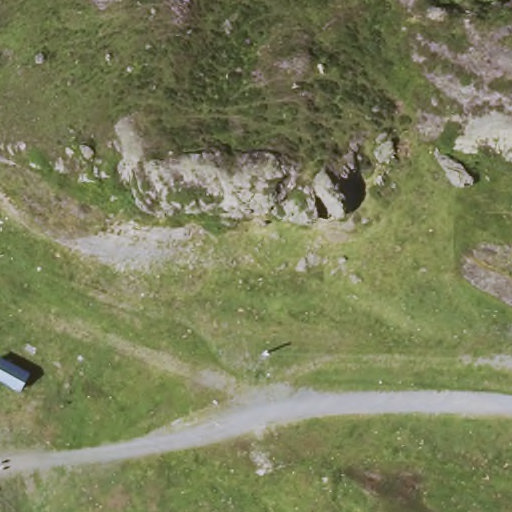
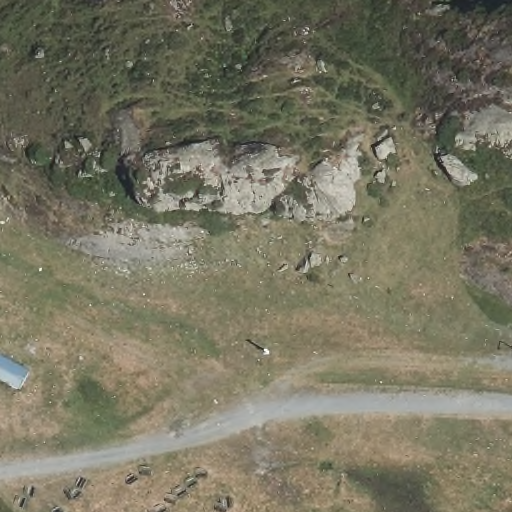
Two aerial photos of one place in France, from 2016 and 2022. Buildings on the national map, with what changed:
unchanged [(0,388),(0,361),(25,375),(13,396),(0,388)]

